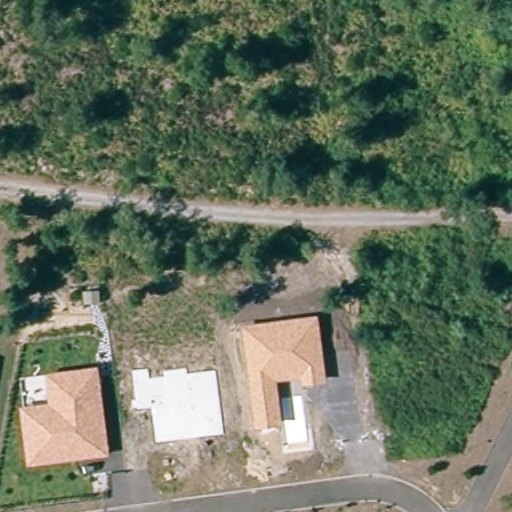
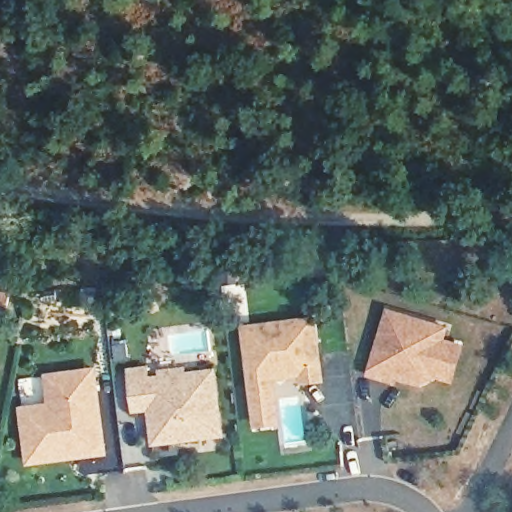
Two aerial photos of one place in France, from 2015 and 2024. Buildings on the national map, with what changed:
new [(436,376),(421,384),(401,378),(398,384),(368,375),(388,307),(451,326),(448,338),(467,344),(455,384),(436,376)]
unchanged [(242,325),(319,314),(327,382),(302,385),(301,377),(279,381),(285,424),(256,428),(242,325)]
new [(219,366),(227,437),(154,446),(150,409),(134,412),(128,367),(149,364),(151,375),(160,373),(159,368),(189,363),(190,370),(219,366)]
unchanged [(99,364),(111,454),(28,466),(21,406),(49,402),(46,372),(99,364)]

